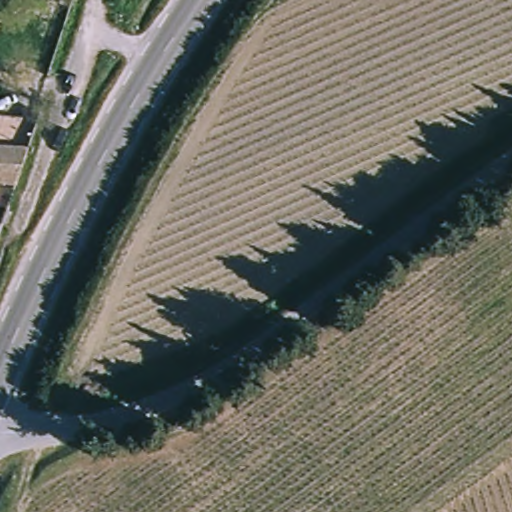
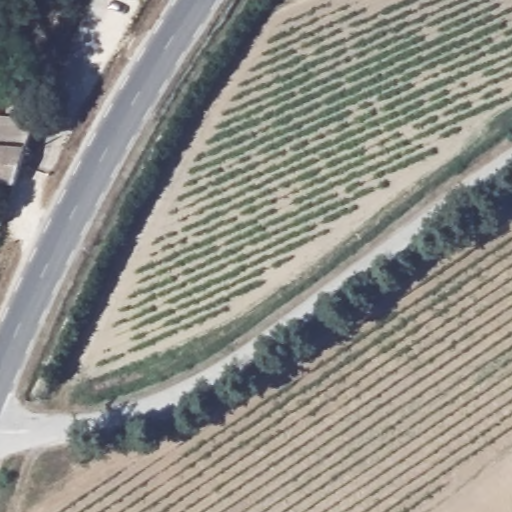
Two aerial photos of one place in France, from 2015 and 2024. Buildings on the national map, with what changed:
unchanged [(0,104),(40,107),(28,145),(0,143),(0,104)]
unchanged [(18,173),(20,174),(20,176),(19,178),(0,177),(0,143),(28,145),(18,173)]

